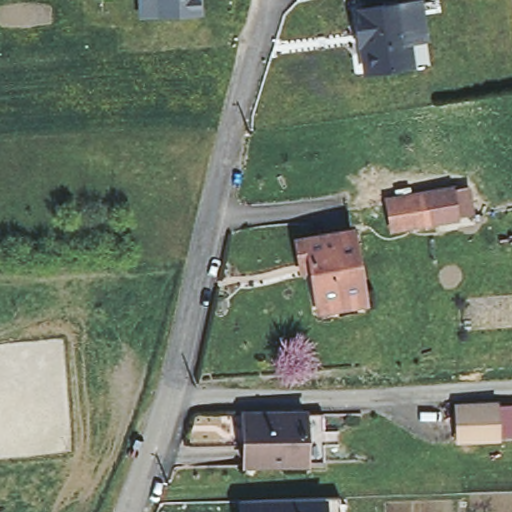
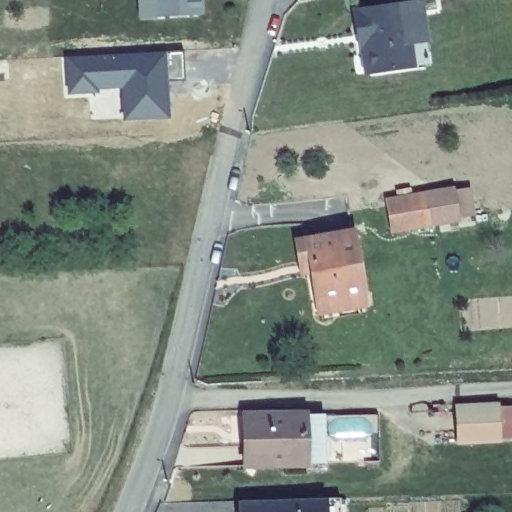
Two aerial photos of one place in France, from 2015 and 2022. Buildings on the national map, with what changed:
unchanged [(154,17),(138,19),(137,0),(201,0),(202,14),(154,17)]
unchanged [(394,0),(425,0),(430,34),(410,37),(414,59),(365,70),(353,5),(394,0)]
new [(183,52),(183,81),(167,81),(170,120),(123,122),(122,89),(97,88),(97,93),(69,95),(66,57),(183,52)]
unchanged [(474,214),(459,217),(460,223),(390,235),(383,199),(453,186),(454,190),(472,188),(474,214)]
unchanged [(327,314),(322,303),(313,275),(302,278),(299,268),(292,246),(343,227),(366,289),(370,299),(327,314)]
unchanged [(502,403),(512,403),(512,435),(504,435),(462,437),(460,405),(502,403)]
unchanged [(238,468),(237,439),(232,434),(232,417),(292,415),(292,417),(310,417),(312,465),(293,466),(293,467),(238,468)]
unchanged [(326,512),(236,512),(236,503),(325,500),(326,512)]

